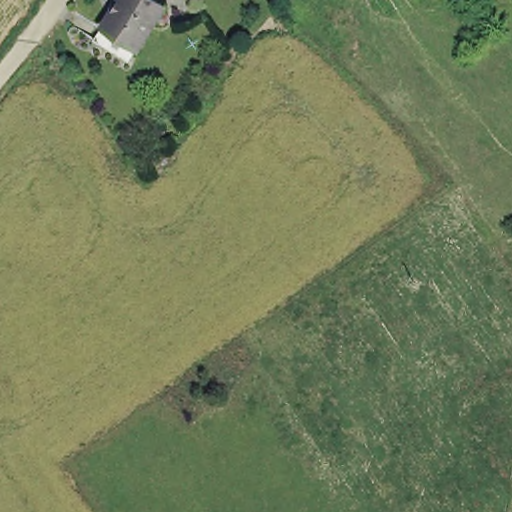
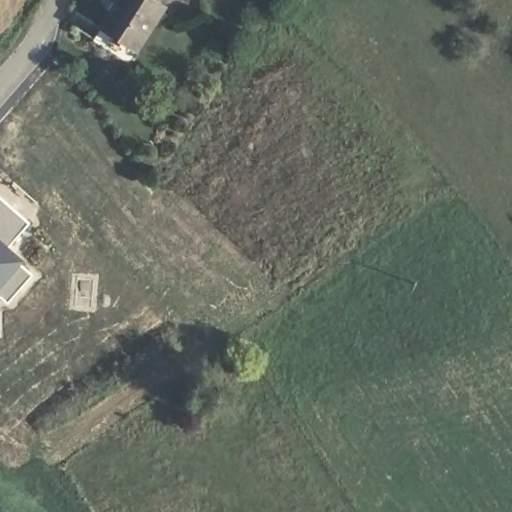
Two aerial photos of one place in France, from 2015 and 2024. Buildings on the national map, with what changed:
unchanged [(110,21),(122,0),(169,0),(143,42),(136,55),(102,34),(110,21)]
new [(10,246),(35,273),(6,305),(0,300),(0,197),(30,222),(10,246)]

